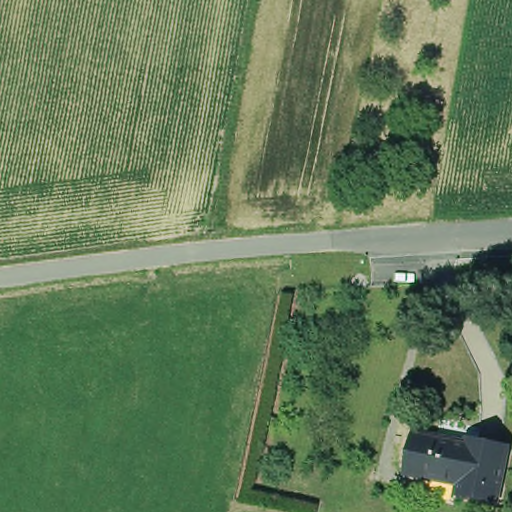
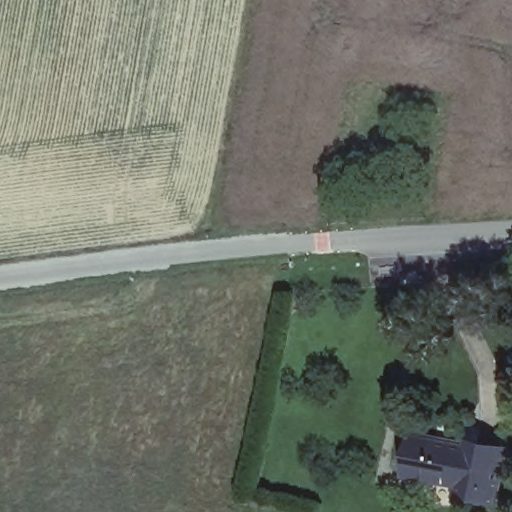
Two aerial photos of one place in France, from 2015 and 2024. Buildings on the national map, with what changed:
unchanged [(455,491),(457,483),(405,472),(412,436),(465,446),(466,439),(506,447),(495,499),(455,491)]

